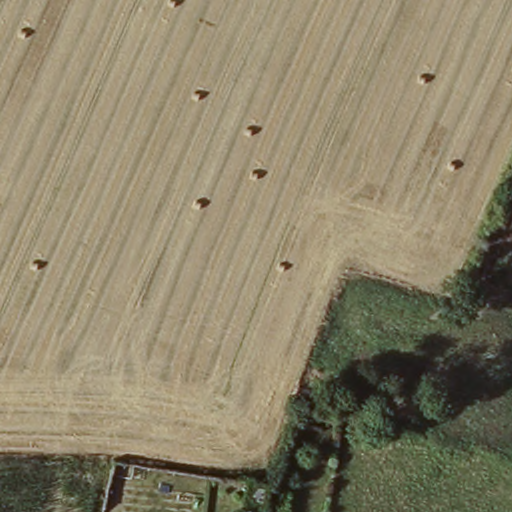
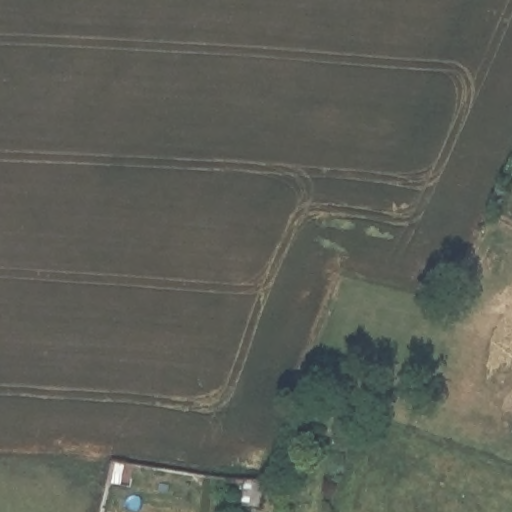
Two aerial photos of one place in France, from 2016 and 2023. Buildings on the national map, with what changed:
unchanged [(237,496),(241,467),(266,471),(261,497),(237,496)]

